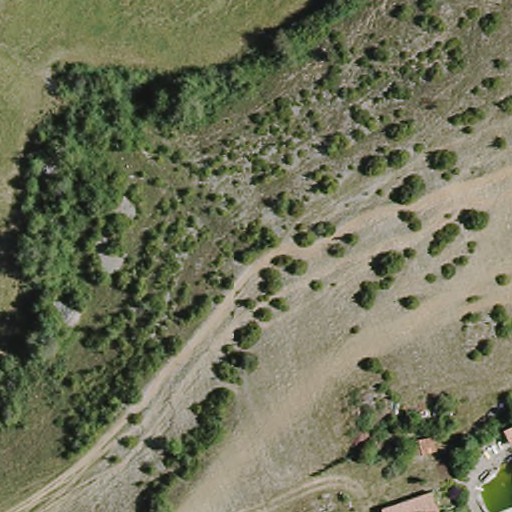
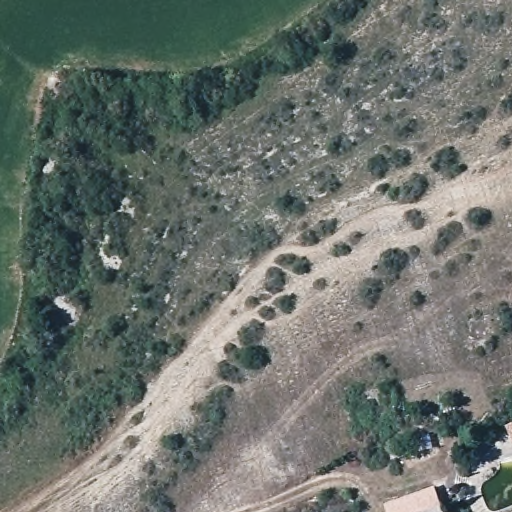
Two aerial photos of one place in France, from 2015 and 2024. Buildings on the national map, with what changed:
unchanged [(512,426),(512,443),(510,444),(504,429),(512,426)]
unchanged [(437,512),(394,512),(431,497),(437,512)]

